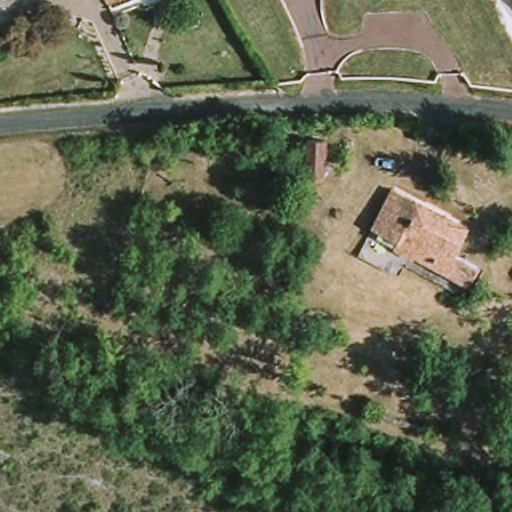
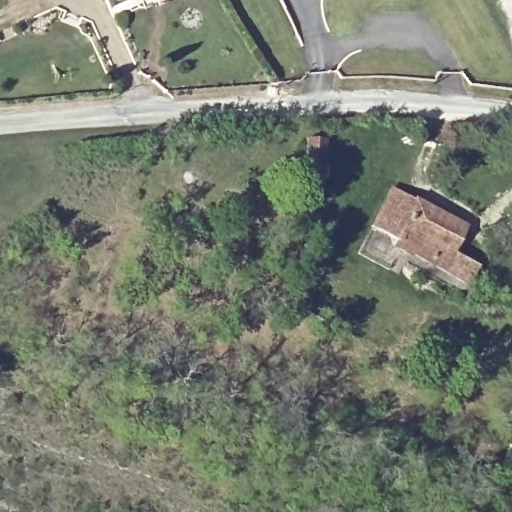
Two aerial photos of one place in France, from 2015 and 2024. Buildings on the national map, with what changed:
unchanged [(309,142),(326,142),(325,178),(309,177),(309,142)]
unchanged [(457,268),(423,251),(417,248),(414,251),(394,240),(397,234),(374,222),(393,186),(466,223),(452,249),(464,254),(487,267),(484,271),(481,279),(457,268)]

